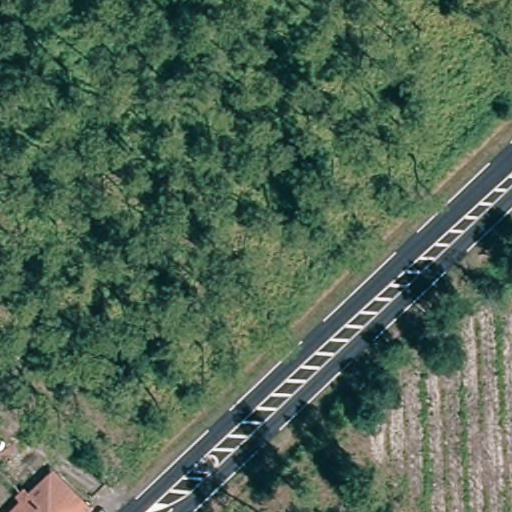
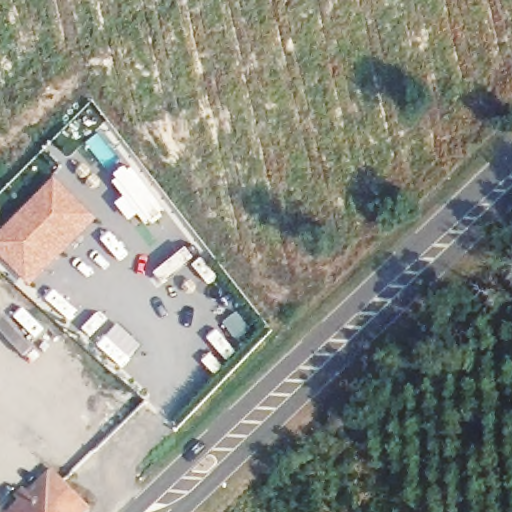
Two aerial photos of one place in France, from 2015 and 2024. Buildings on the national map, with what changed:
new [(129,165),(166,212),(147,226),(139,216),(129,223),(115,205),(124,197),(111,179),(129,165)]
new [(98,221),(29,288),(0,260),(0,230),(54,178),(98,221)]
new [(35,349),(24,359),(0,332),(0,318),(4,315),(35,349)]
unchanged [(91,506),(84,512),(9,512),(54,468),(91,506)]

